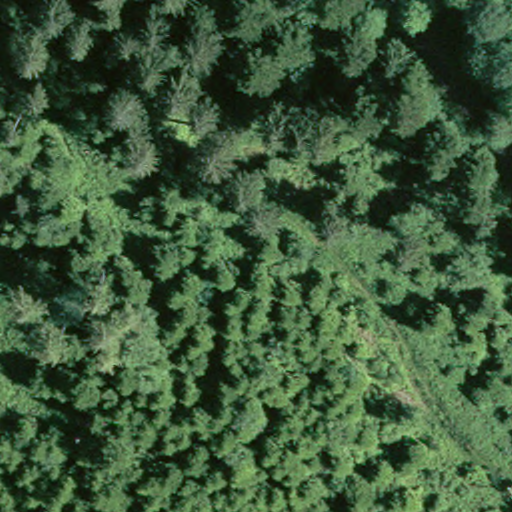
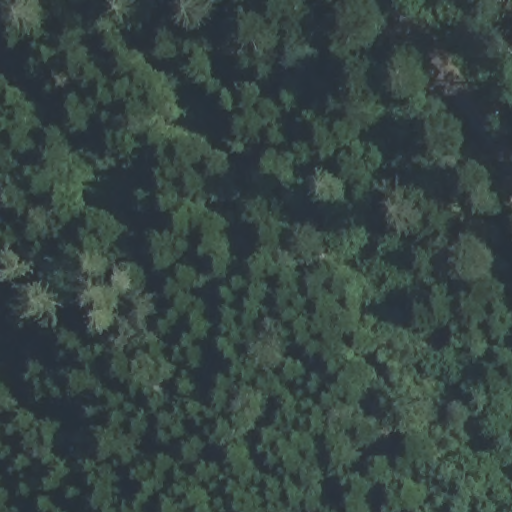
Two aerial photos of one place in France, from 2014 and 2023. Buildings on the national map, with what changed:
[]

